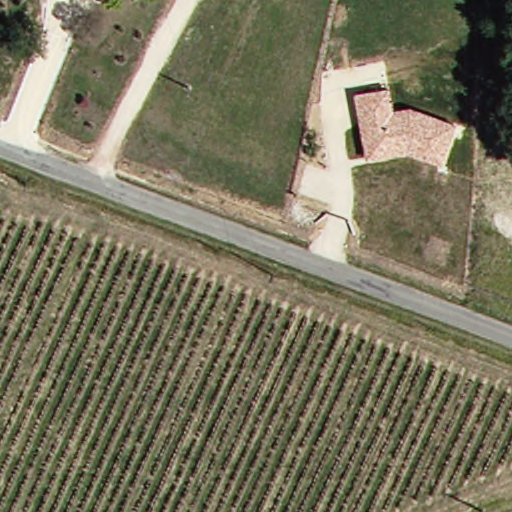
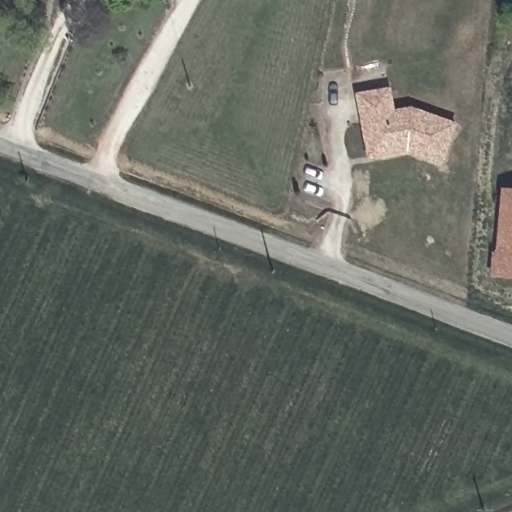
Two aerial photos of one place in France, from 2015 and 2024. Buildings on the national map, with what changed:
unchanged [(391,88),(394,109),(411,106),(456,123),(442,164),(408,151),(366,159),(354,93),(391,88)]
new [(512,278),(489,276),(490,253),(494,253),(500,188),(512,189),(512,278)]

